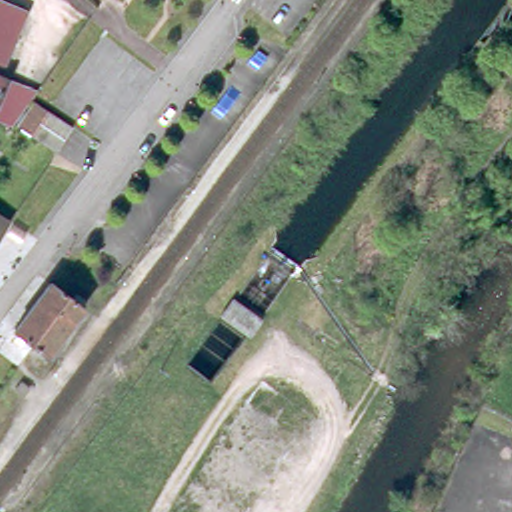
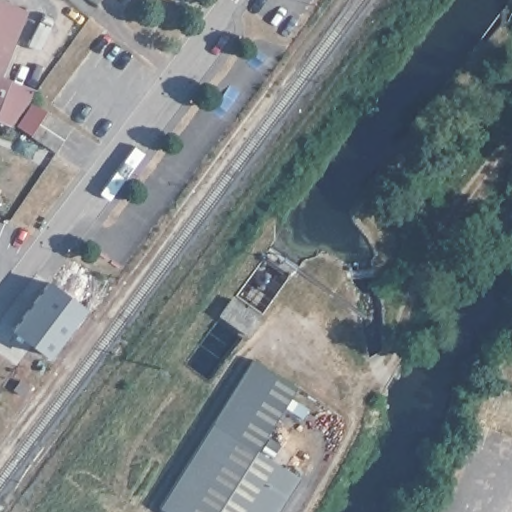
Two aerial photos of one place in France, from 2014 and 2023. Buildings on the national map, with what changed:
unchanged [(0,57),(0,0),(23,0),(0,57)]
unchanged [(5,71),(34,83),(27,92),(10,117),(0,113),(0,67),(6,68),(5,71)]
unchanged [(34,128),(30,126),(17,116),(34,95),(47,104),(70,120),(56,139),(54,142),(34,128)]
demolished [(0,218),(0,215),(2,216),(0,218)]
unchanged [(9,325),(44,279),(77,304),(42,350),(29,340),(9,325)]
unchanged [(256,333),(227,314),(237,299),(266,318),(256,333)]
new [(254,360),(296,386),(258,450),(298,475),(276,512),(163,512),(159,509),(254,360)]
demolished [(270,476),(245,512),(169,512),(168,511),(261,374),(311,407),(316,410),(284,456),(308,472),(295,492),(270,476)]

